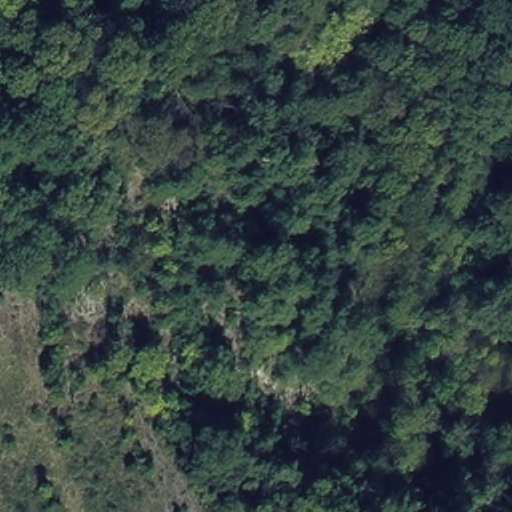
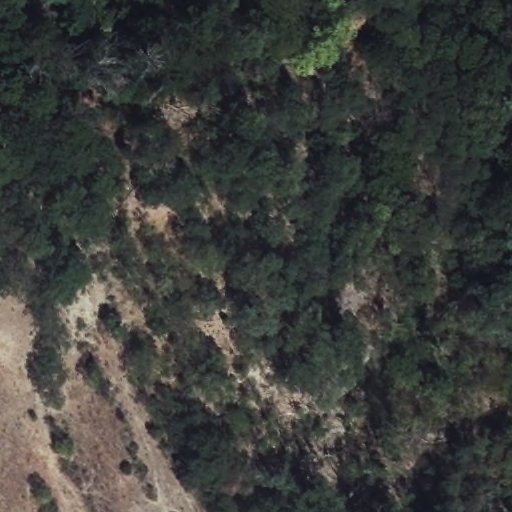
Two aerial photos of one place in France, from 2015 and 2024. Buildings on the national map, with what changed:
[]

